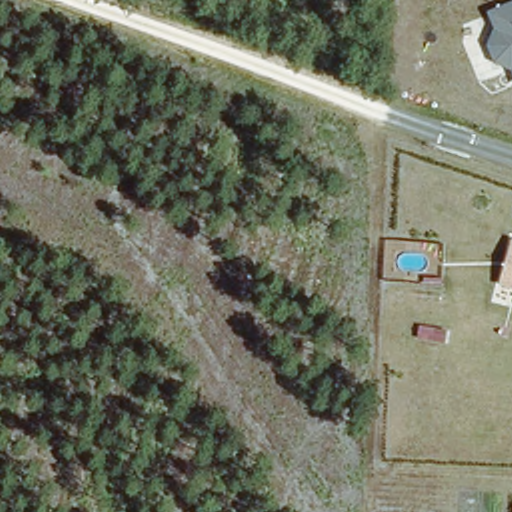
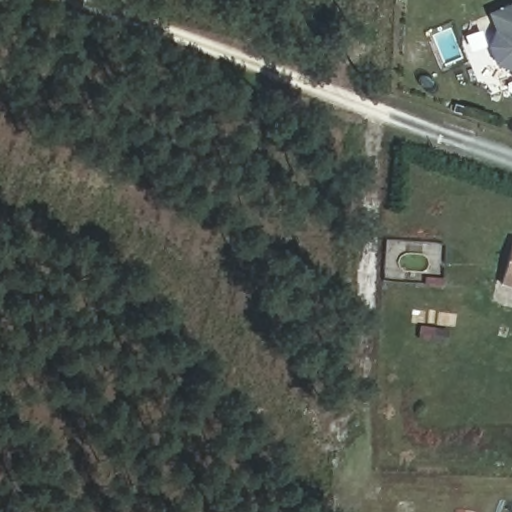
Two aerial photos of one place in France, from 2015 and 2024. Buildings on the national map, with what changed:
unchanged [(491,44),(497,32),(492,12),(512,4),(512,69),(496,62),(491,44)]
unchanged [(512,241),(512,289),(500,286),(512,241)]

